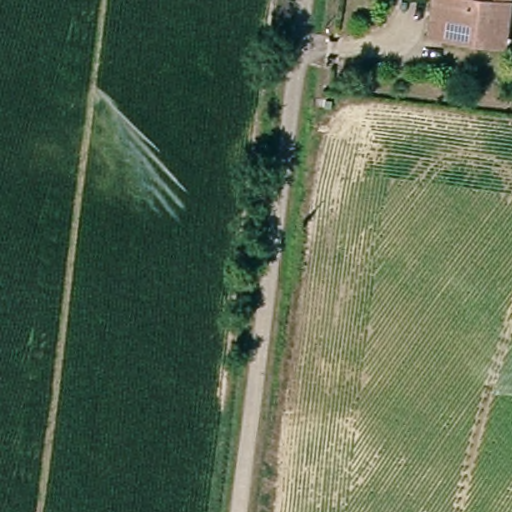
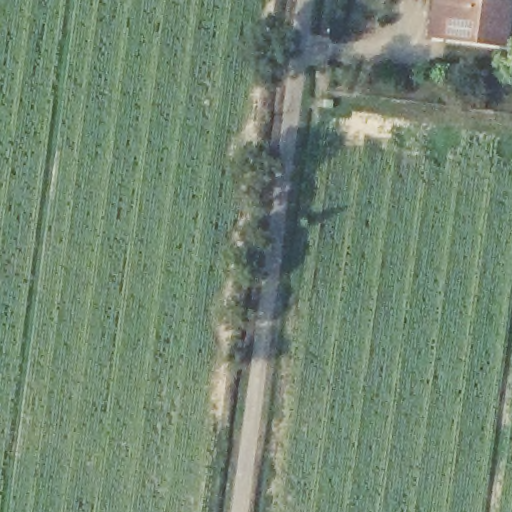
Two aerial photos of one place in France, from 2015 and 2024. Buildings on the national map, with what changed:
unchanged [(431,40),(435,0),(451,0),(447,41),(431,40)]
unchanged [(457,0),(482,2),(483,0),(512,0),(512,22),(510,46),(447,41),(451,0),(457,0)]
unchanged [(457,0),(483,0),(482,2),(457,0)]

